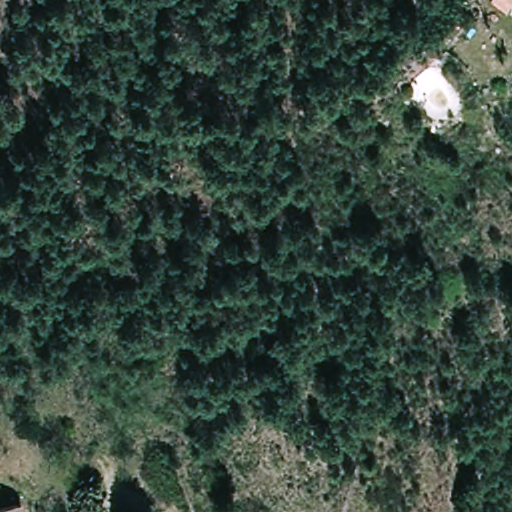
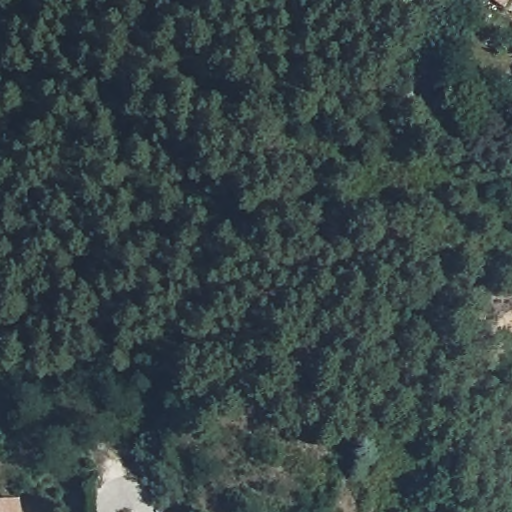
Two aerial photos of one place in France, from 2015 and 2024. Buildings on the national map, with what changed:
unchanged [(21,500),(23,512),(0,512),(0,504),(21,500)]

